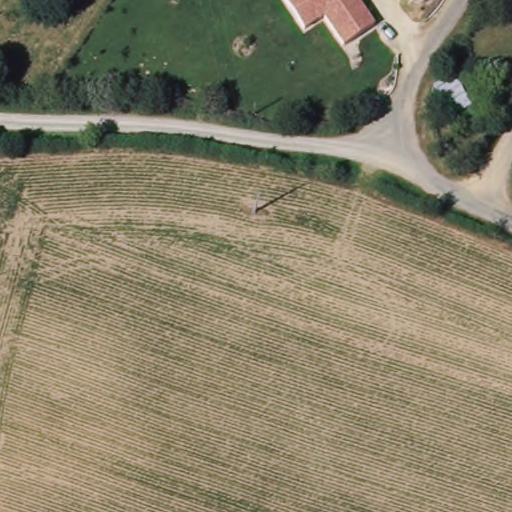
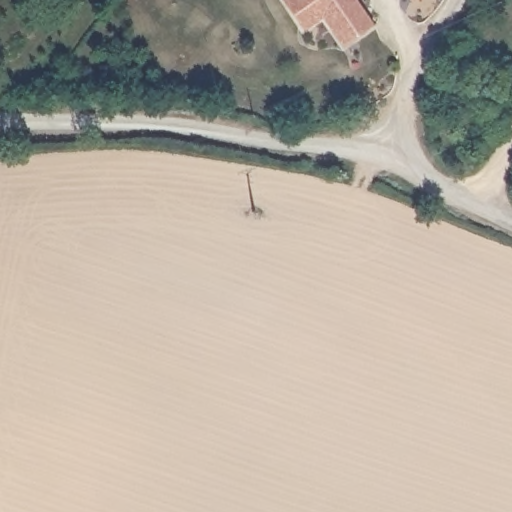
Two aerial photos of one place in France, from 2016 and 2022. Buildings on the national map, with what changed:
unchanged [(344,45),(325,18),(303,31),(284,0),(355,0),(374,26),(344,45)]
unchanged [(412,0),(411,1),(411,0),(412,0)]

